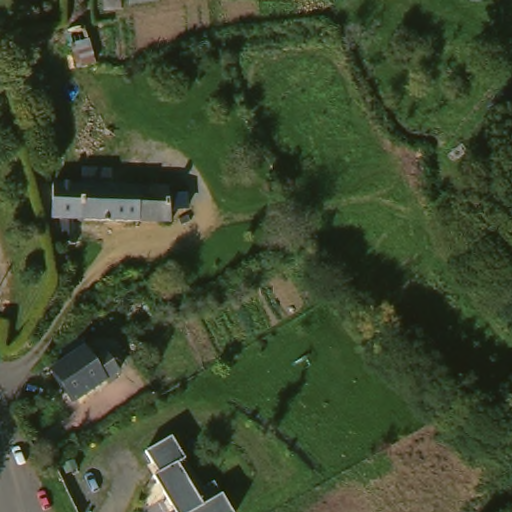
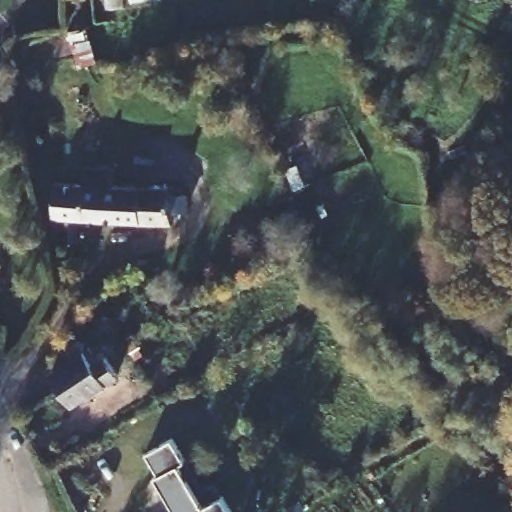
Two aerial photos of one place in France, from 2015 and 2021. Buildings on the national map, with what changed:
unchanged [(75,74),(64,32),(81,28),(86,40),(95,38),(101,66),(75,74)]
unchanged [(186,215),(167,224),(114,224),(51,220),(52,181),(82,182),(84,166),(115,169),(116,186),(185,187),(186,215)]
unchanged [(209,308),(184,318),(177,295),(201,285),(209,308)]
unchanged [(93,348),(99,360),(111,355),(122,371),(70,401),(52,372),(93,348)]
unchanged [(152,479),(157,470),(148,447),(171,433),(187,461),(181,466),(207,498),(223,489),(239,511),(237,512),(177,512),(152,479)]

